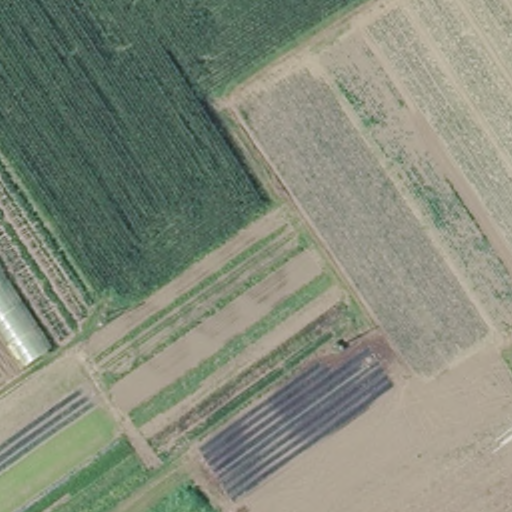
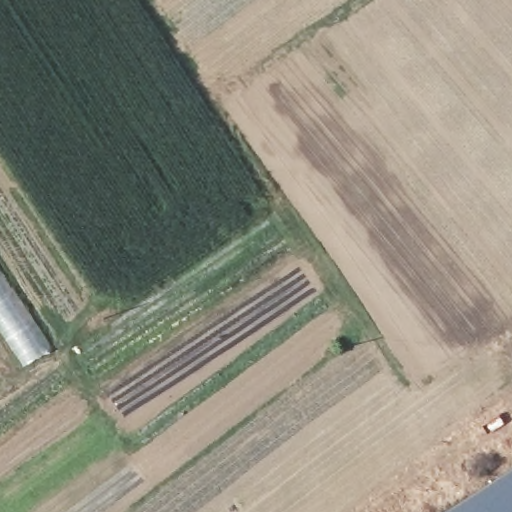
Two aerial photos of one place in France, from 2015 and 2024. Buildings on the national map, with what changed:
new [(512,512),(441,512),(512,466),(512,512)]

